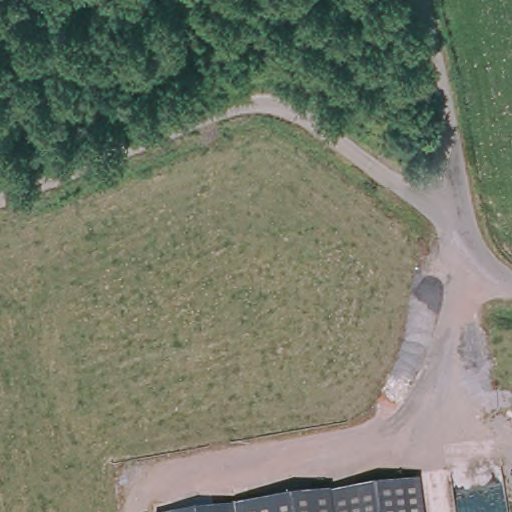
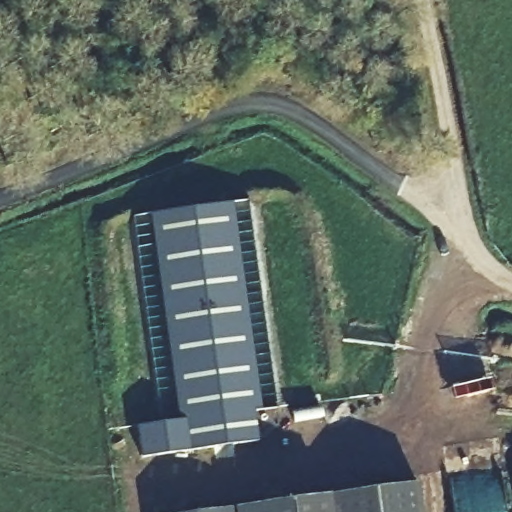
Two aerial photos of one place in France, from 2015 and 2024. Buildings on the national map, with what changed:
new [(140,426),(182,420),(172,342),(167,343),(166,331),(170,330),(154,215),(233,203),(262,408),(255,409),(260,441),(145,457),(140,426)]
unchanged [(424,512),(180,512),(420,481),(424,512)]

